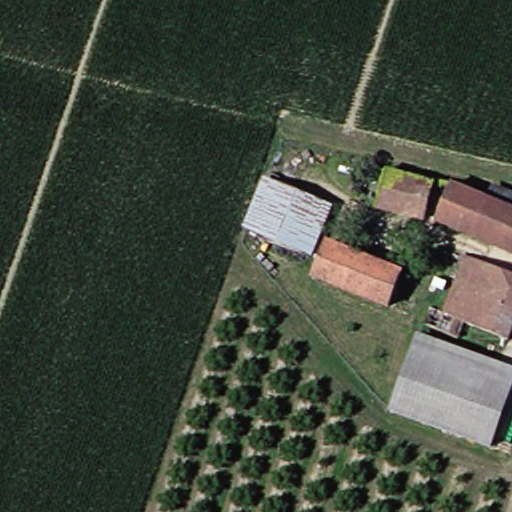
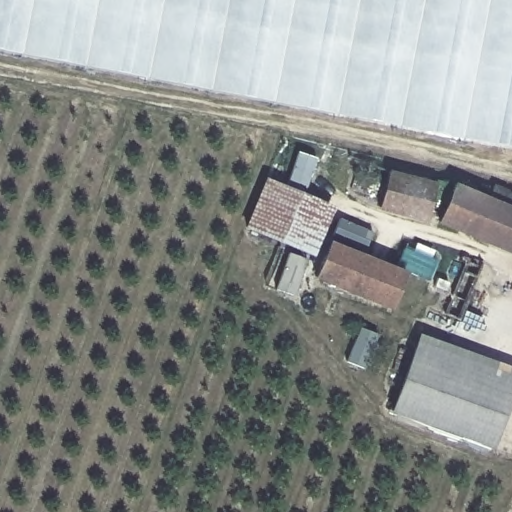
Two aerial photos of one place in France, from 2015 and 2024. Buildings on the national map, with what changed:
new [(512,149),(0,52),(0,0),(512,0),(512,149)]
unchanged [(444,181),(435,216),(389,203),(398,169),(444,181)]
unchanged [(334,207),(315,256),(252,229),(270,180),(334,207)]
unchanged [(512,247),(443,217),(455,186),(512,208),(512,247)]
unchanged [(404,276),(390,308),(320,278),(333,245),(404,276)]
demolished [(441,306),(453,310),(476,257),(512,273),(512,332),(476,320),(468,337),(432,322),(441,306)]
unchanged [(512,393),(494,442),(399,404),(421,343),(512,379),(512,393)]

